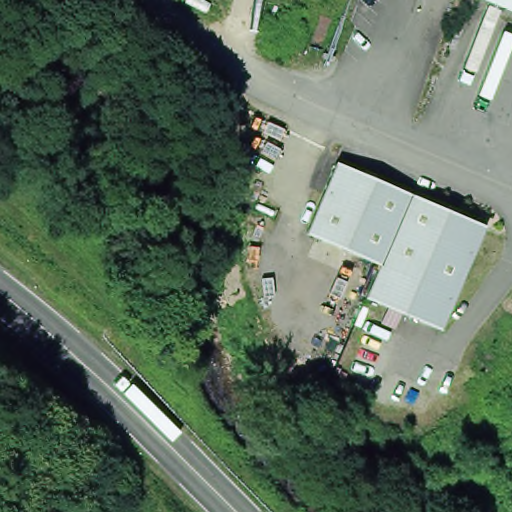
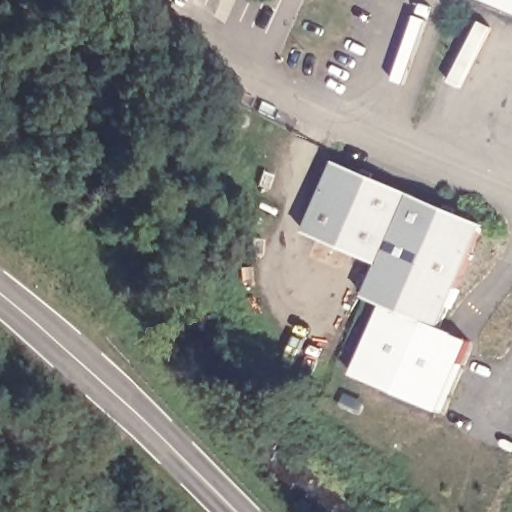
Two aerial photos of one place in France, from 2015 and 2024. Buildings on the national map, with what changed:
new [(267,2),(262,0),(269,0),(267,2)]
unchanged [(512,10),(489,0),(512,0),(512,10)]
unchanged [(312,234),(340,170),(342,162),(390,184),(489,226),(446,328),(373,298),(385,265),(312,234)]
new [(473,342),(440,412),(355,376),(386,303),(446,328),(473,342)]

